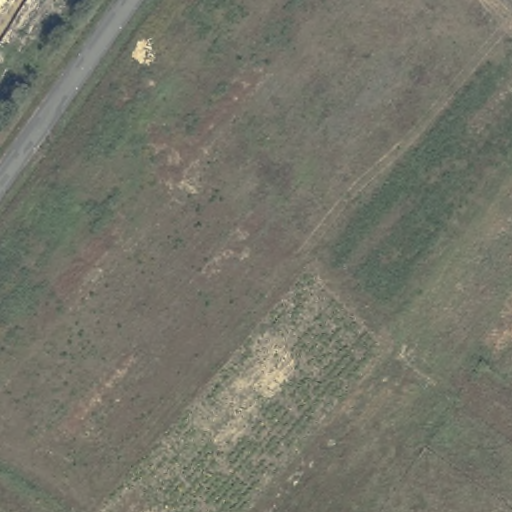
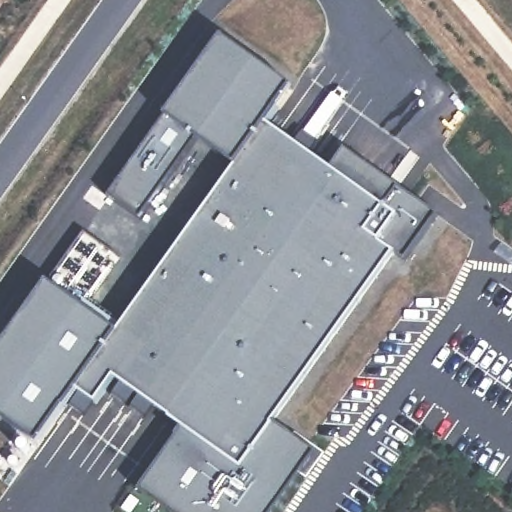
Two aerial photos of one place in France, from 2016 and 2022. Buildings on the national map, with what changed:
new [(393,254),(273,423),(317,453),(275,512),(165,512),(138,492),(180,431),(168,423),(171,419),(114,379),(96,405),(74,392),(37,442),(0,417),(0,348),(45,281),(119,332),(235,168),(195,139),(141,221),(108,198),(164,117),(221,38),(292,87),(267,124),(330,168),(343,149),(437,214),(405,261),(393,254)]

